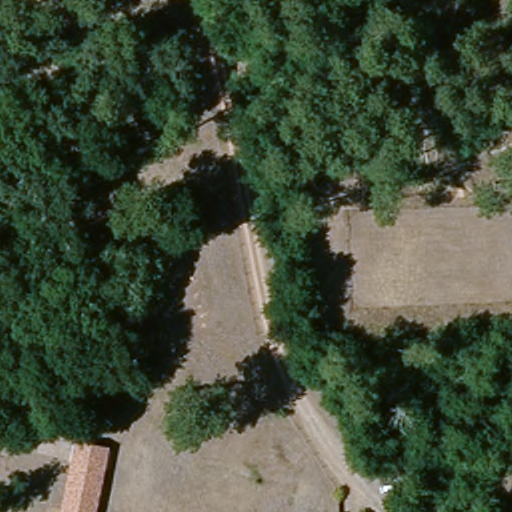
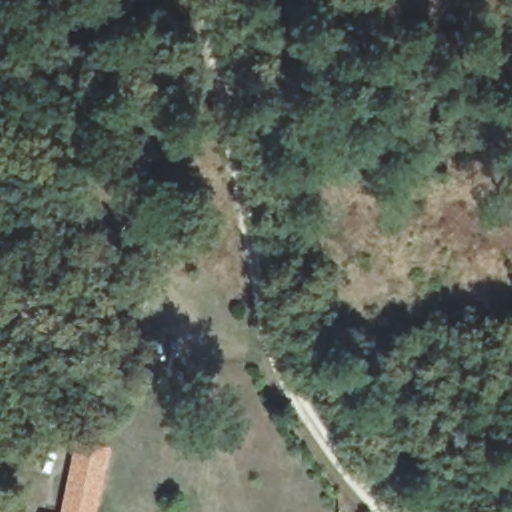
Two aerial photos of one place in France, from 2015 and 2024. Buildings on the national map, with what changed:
unchanged [(111,463),(100,512),(65,512),(77,455),(111,463)]

